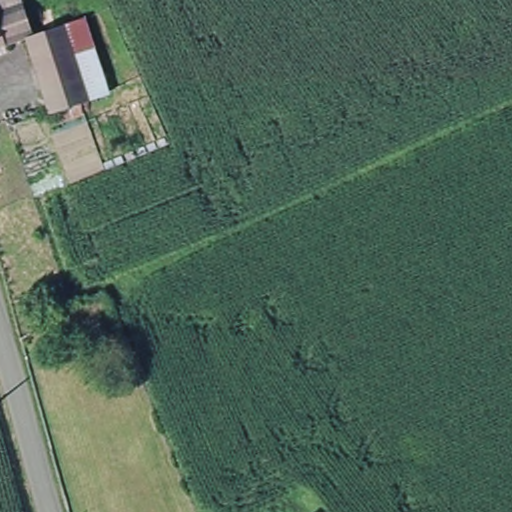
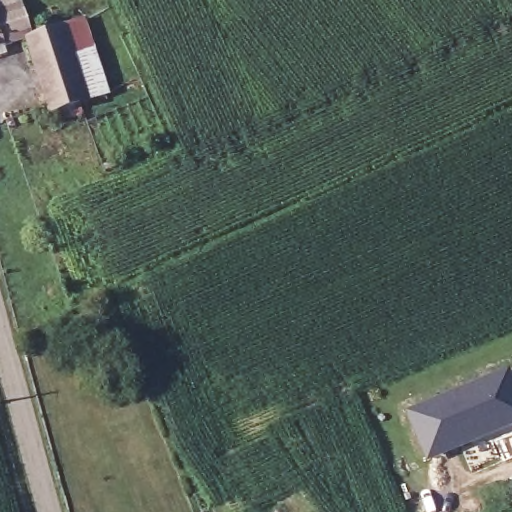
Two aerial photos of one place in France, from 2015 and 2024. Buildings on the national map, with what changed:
unchanged [(32,36),(0,46),(0,0),(20,0),(32,36)]
unchanged [(84,19),(111,89),(91,96),(64,26),(84,19)]
unchanged [(64,26),(91,96),(84,97),(56,107),(52,96),(32,36),(64,26)]
new [(447,404),(461,398),(458,393),(511,372),(512,376),(512,423),(491,431),(492,433),(463,446),(460,436),(447,442),(449,449),(430,457),(412,413),(446,400),(447,404)]

